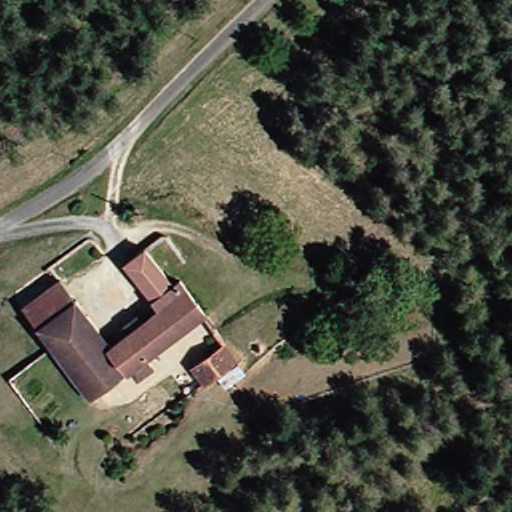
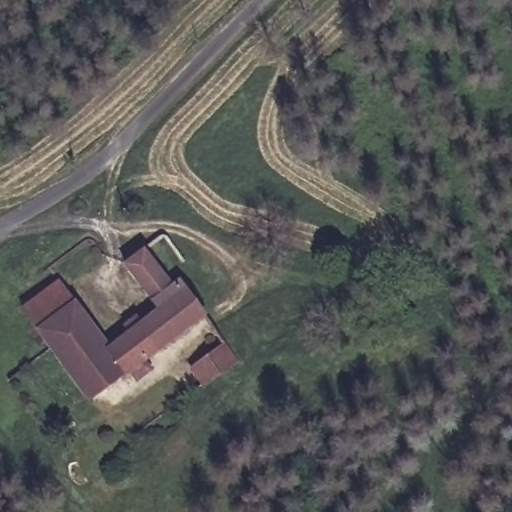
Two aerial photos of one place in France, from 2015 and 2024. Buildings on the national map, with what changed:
unchanged [(150,249),(178,283),(185,278),(211,313),(148,358),(158,369),(141,381),(135,373),(91,402),(42,330),(26,306),(65,279),(82,302),(114,344),(133,331),(128,324),(141,314),(146,320),(163,307),(128,265),(150,249)]
unchanged [(223,342),(238,363),(202,387),(190,367),(223,342)]

